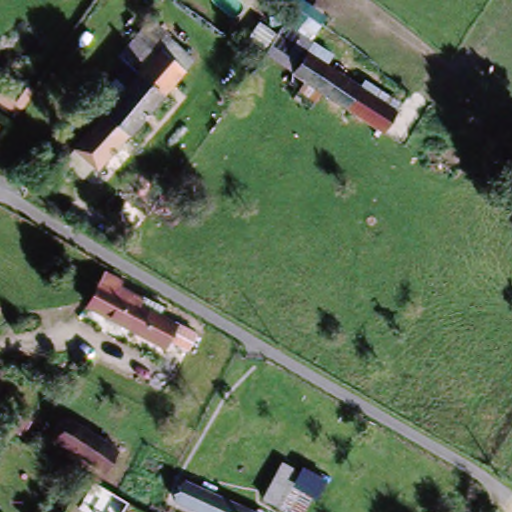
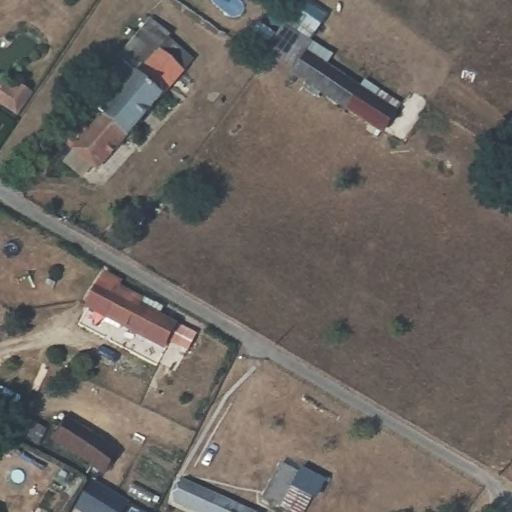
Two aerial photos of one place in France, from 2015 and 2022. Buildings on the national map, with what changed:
unchanged [(168,89),(135,129),(105,164),(86,149),(117,111),(107,103),(138,65),(131,60),(148,40),(157,47),(183,70),(168,89)]
unchanged [(377,131),(319,94),(295,77),(309,56),(333,73),(389,110),(377,131)]
unchanged [(16,113),(0,102),(0,90),(5,85),(15,92),(20,86),(30,95),(16,113)]
unchanged [(182,357),(162,345),(159,351),(96,312),(85,305),(105,273),(120,280),(117,286),(140,300),(137,307),(172,328),(192,340),(182,357)]
unchanged [(220,372),(206,365),(218,341),(233,348),(220,372)]
unchanged [(208,395),(197,390),(201,381),(212,386),(208,395)]
unchanged [(32,421),(24,436),(0,423),(0,403),(32,421)]
unchanged [(102,478),(93,472),(43,439),(56,419),(105,452),(114,458),(102,478)]
unchanged [(277,465),(297,476),(290,493),(302,501),(298,512),(286,512),(261,498),(277,465)]
unchanged [(238,512),(186,512),(167,503),(176,483),(238,512)]

